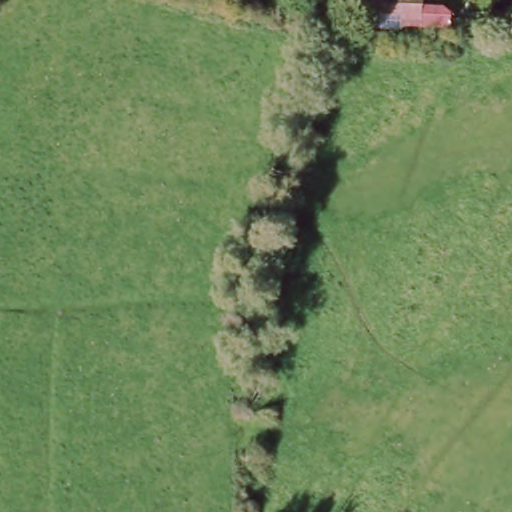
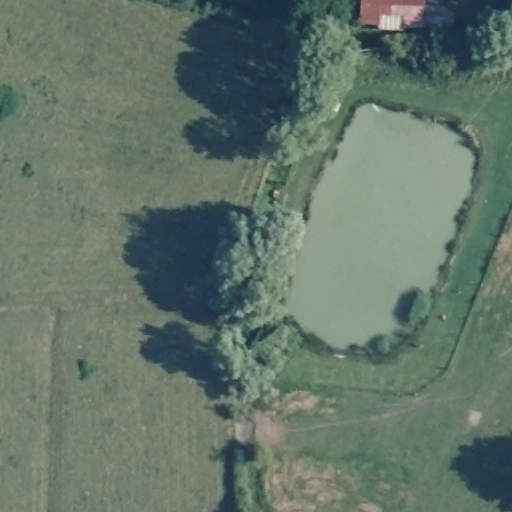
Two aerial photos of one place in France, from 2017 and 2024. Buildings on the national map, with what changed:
unchanged [(425,0),(425,9),(452,10),(453,33),(398,33),(399,23),(359,19),(359,0),(425,0)]

